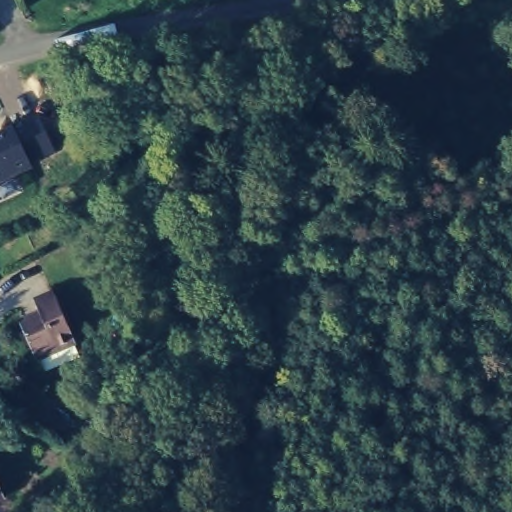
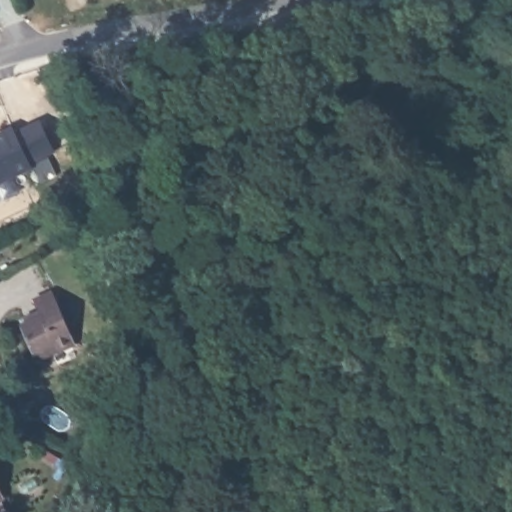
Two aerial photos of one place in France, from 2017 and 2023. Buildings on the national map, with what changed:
unchanged [(14,129),(40,115),(57,151),(30,164),(32,171),(0,185),(0,136),(14,129)]
unchanged [(82,343),(43,360),(29,325),(48,317),(41,300),(59,293),(82,343)]
unchanged [(6,492),(0,495),(0,479),(6,492)]

